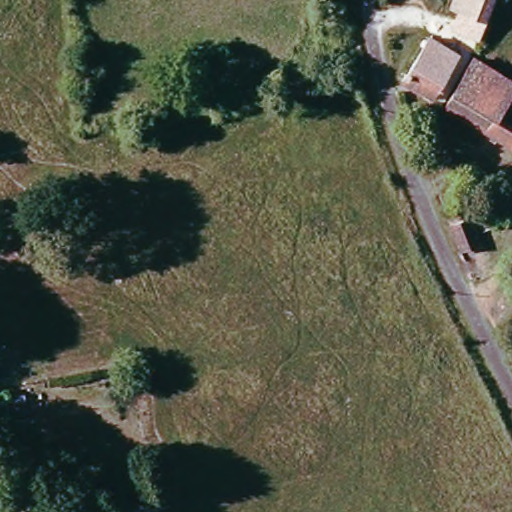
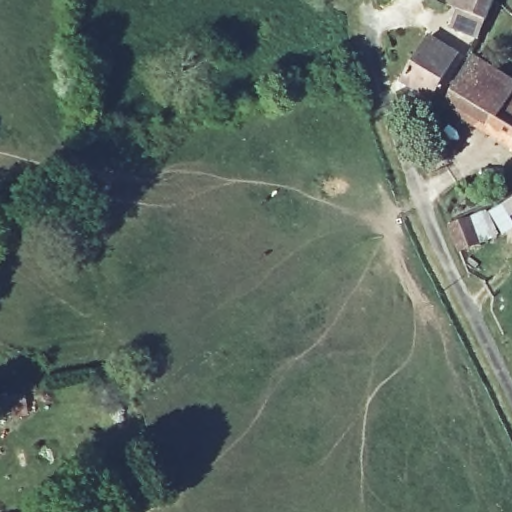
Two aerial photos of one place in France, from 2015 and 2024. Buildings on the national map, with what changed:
unchanged [(498,0),(490,24),(463,13),(454,10),(457,0),(498,0)]
unchanged [(311,43),(355,32),(359,59),(317,69),(311,43)]
unchanged [(451,54),(422,100),(394,82),(423,36),(451,54)]
unchanged [(475,57),(512,80),(512,152),(445,111),(475,57)]
unchanged [(465,257),(455,232),(471,226),(481,252),(465,257)]

